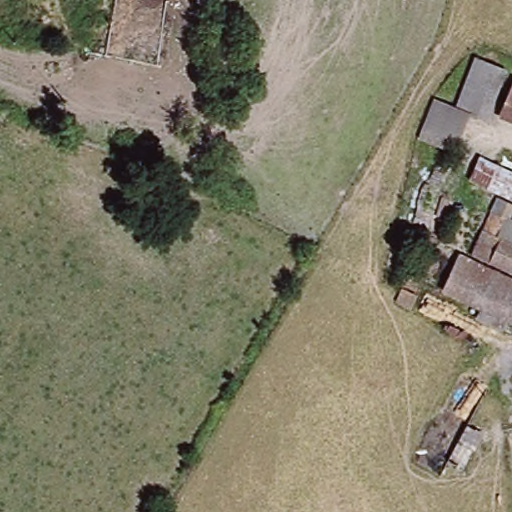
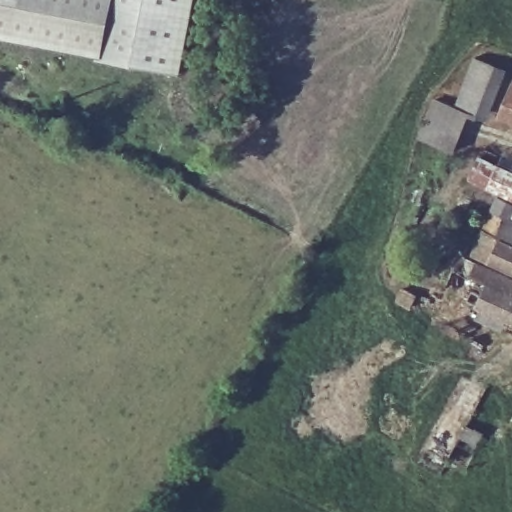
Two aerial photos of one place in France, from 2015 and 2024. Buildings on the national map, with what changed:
new [(102,55),(0,35),(0,0),(195,0),(182,73),(102,55)]
unchanged [(485,123),(467,116),(452,157),(415,139),(432,98),(454,103),(472,59),(505,70),(485,123)]
demolished [(113,131),(121,82),(167,89),(159,138),(113,131)]
unchanged [(504,111),(512,98),(512,115),(504,111)]
unchanged [(477,158),(512,175),(512,198),(510,203),(466,181),(477,158)]
unchanged [(468,257),(490,214),(501,219),(512,224),(512,278),(468,257)]
unchanged [(512,283),(512,299),(447,271),(456,258),(512,283)]
unchanged [(439,292),(447,271),(512,299),(512,328),(439,292)]

